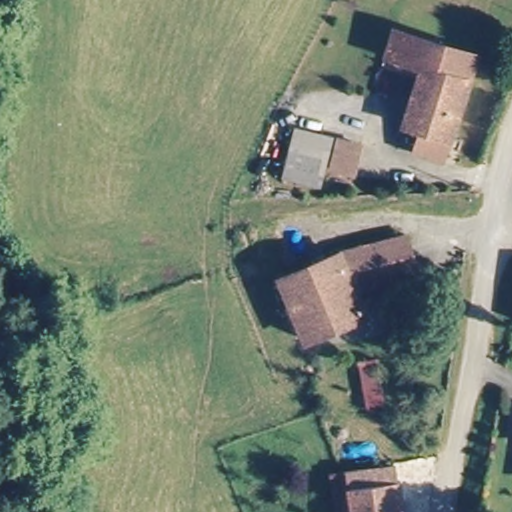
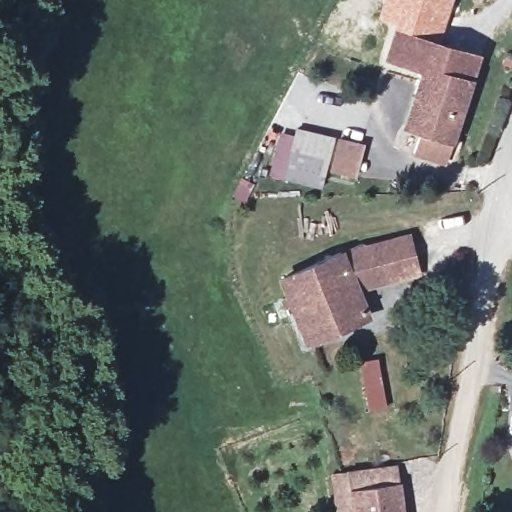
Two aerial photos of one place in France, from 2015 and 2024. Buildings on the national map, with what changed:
new [(393,27),(395,22),(377,17),(382,0),(452,0),(438,42),(397,27),(393,27)]
unchanged [(418,124),(405,120),(423,66),(388,51),(397,27),(475,56),(448,135),(440,158),(410,148),(418,124)]
unchanged [(279,175),(297,128),(333,142),(315,189),(279,175)]
unchanged [(327,174),(338,145),(359,152),(348,182),(327,174)]
unchanged [(310,343),(287,285),(286,282),(307,272),(365,246),(367,249),(406,232),(418,270),(358,290),(370,316),(310,343)]
unchanged [(391,408),(373,413),(362,365),(379,360),(391,408)]
unchanged [(329,476),(339,475),(342,473),(390,465),(393,483),(397,482),(402,512),(334,512),(329,476)]

